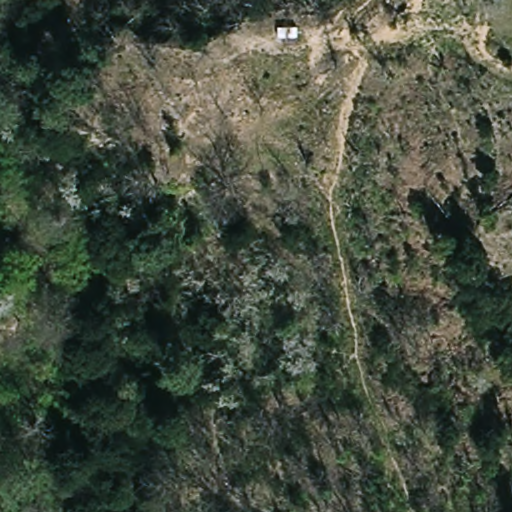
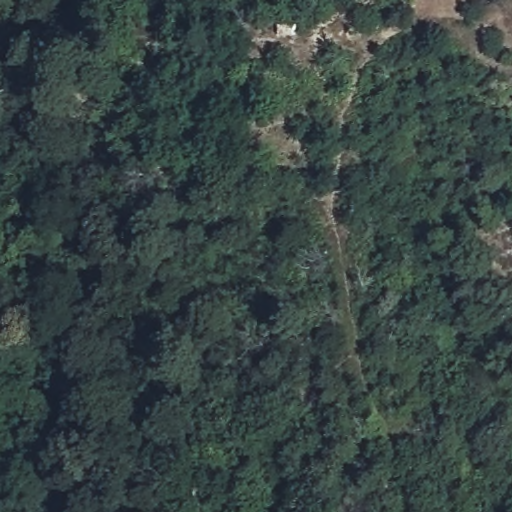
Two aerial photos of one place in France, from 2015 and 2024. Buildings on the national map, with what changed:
[]

